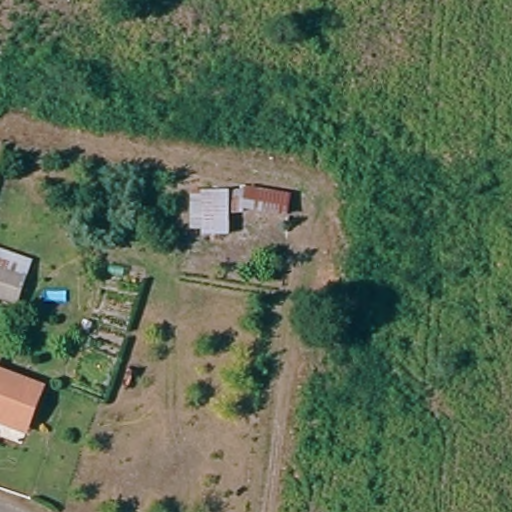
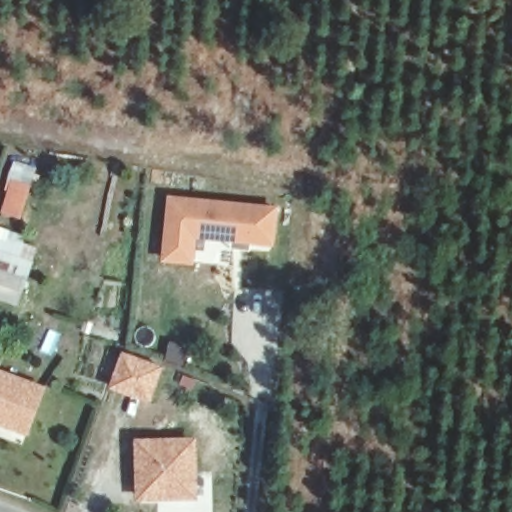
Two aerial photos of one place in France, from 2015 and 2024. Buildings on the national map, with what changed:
new [(161,259),(167,195),(277,204),(273,243),(195,235),(192,261),(161,259)]
unchanged [(32,267),(20,306),(0,299),(0,257),(32,267)]
new [(121,351),(163,366),(149,404),(106,387),(121,351)]
unchanged [(41,389),(31,424),(27,435),(0,427),(0,377),(41,389)]
new [(196,496),(136,497),(134,438),(194,438),(196,496)]

